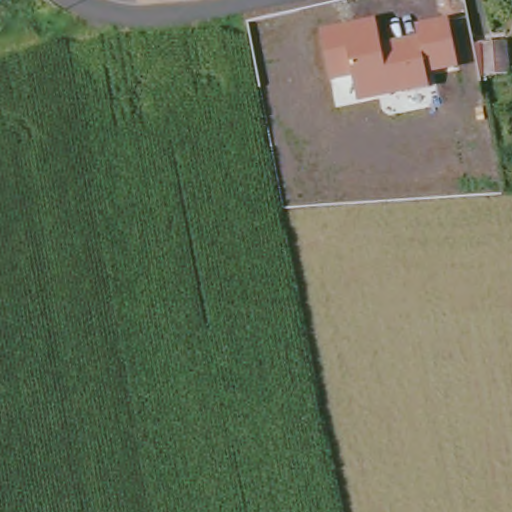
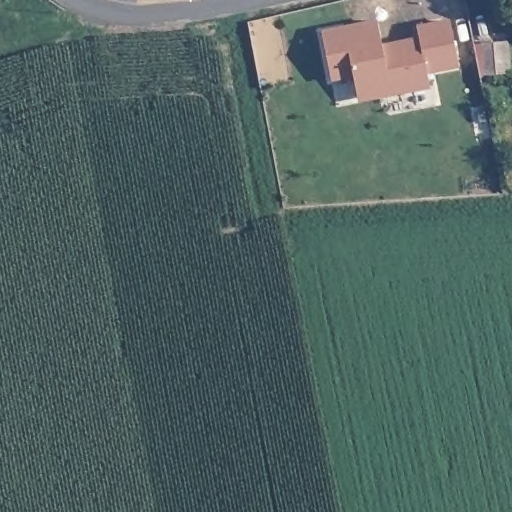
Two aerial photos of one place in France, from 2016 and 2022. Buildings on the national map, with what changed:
unchanged [(322,30),(377,20),(380,44),(418,36),(416,25),(448,19),(458,69),(425,76),(428,89),(357,104),(352,75),(331,82),(322,30)]
unchanged [(505,70),(479,70),(477,45),(502,44),(505,70)]

